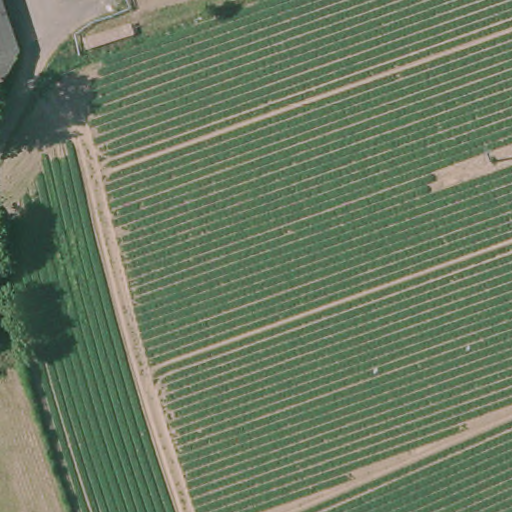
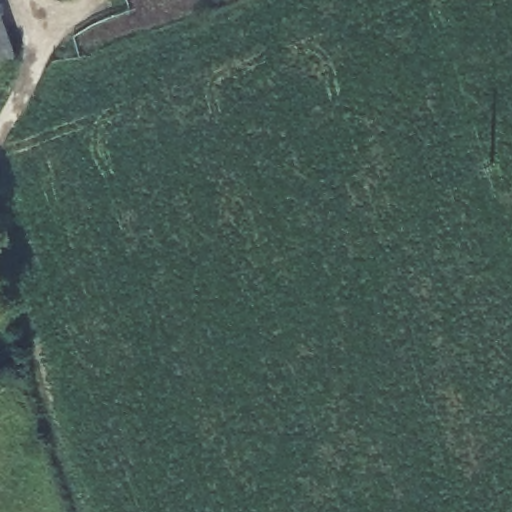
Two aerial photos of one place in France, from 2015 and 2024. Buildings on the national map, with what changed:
unchanged [(17,56),(2,85),(0,86),(0,6),(17,56)]

